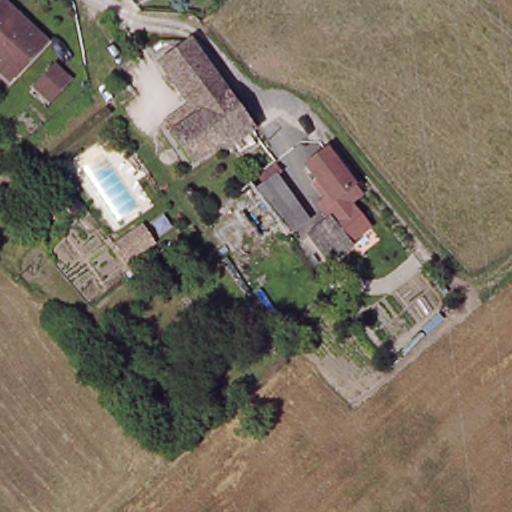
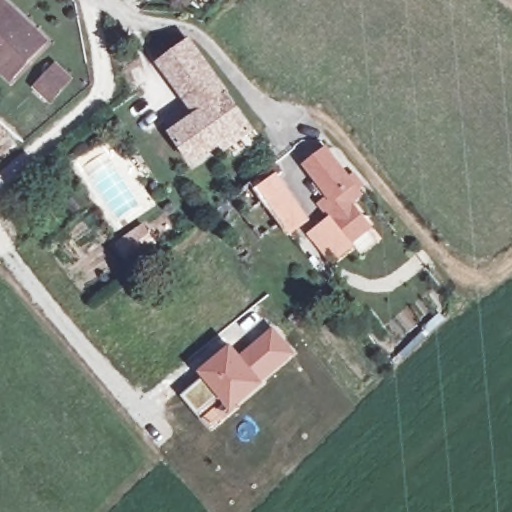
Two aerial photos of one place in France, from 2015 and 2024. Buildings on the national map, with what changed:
unchanged [(47,42),(12,80),(0,68),(0,0),(2,0),(47,42)]
unchanged [(242,156),(238,150),(233,144),(226,149),(223,143),(196,162),(174,134),(168,125),(194,105),(163,61),(191,40),(259,134),(253,138),(258,144),(242,156)]
unchanged [(38,86),(59,64),(73,77),(52,100),(38,86)]
unchanged [(364,186),(359,190),(364,195),(343,210),(308,165),(329,150),(351,179),(355,175),(364,186)]
unchanged [(268,185),(262,177),(276,165),(282,173),(278,176),(310,220),(291,235),(283,223),(259,191),(268,185)]
unchanged [(311,235),(334,219),(355,245),(333,263),(311,235)]
new [(273,325),(298,352),(266,383),(241,353),(273,325)]
new [(232,342),(241,353),(266,383),(231,413),(202,377),(198,371),(232,342)]
new [(202,377),(231,413),(211,428),(181,395),(202,377)]

